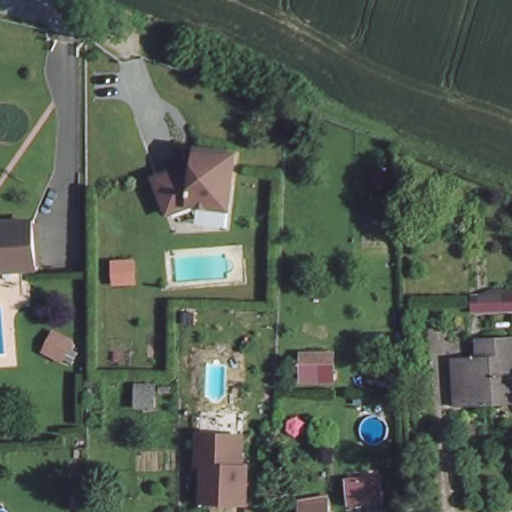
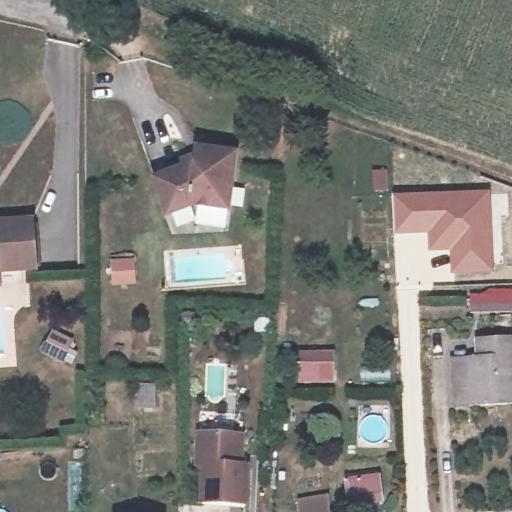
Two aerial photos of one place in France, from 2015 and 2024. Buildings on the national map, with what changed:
unchanged [(216,207),(194,204),(168,210),(157,175),(204,160),(205,147),(243,157),(235,187),(230,210),(216,207)]
new [(490,190),(494,272),(451,275),(449,251),(428,253),(427,235),(394,236),(392,194),(490,190)]
unchanged [(37,265),(0,265),(0,219),(36,216),(37,265)]
new [(469,313),(468,287),(512,286),(512,313),(469,313)]
unchanged [(468,352),(485,352),(485,337),(512,337),(512,404),(467,405),(468,352)]
unchanged [(340,360),(339,386),(308,385),(309,359),(340,360)]
unchanged [(131,405),(131,389),(159,391),(158,406),(131,405)]
unchanged [(199,500),(202,462),(197,461),(199,430),(242,435),(239,465),(246,466),(242,504),(199,500)]
unchanged [(350,500),(351,475),(379,477),(377,501),(350,500)]
unchanged [(308,511),(317,512),(308,512),(308,511)]

